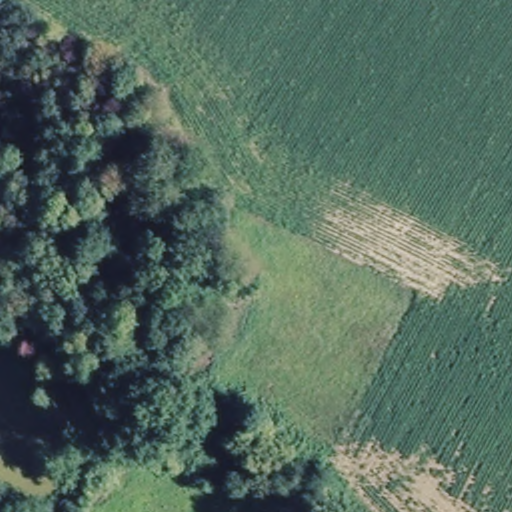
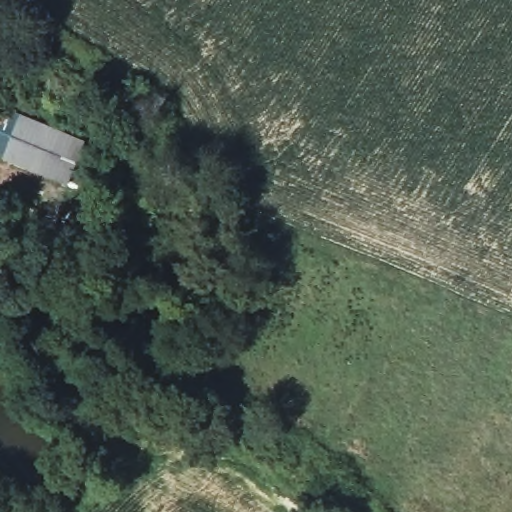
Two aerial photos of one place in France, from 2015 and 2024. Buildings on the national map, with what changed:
new [(19,119),(1,162),(0,161),(0,111),(19,119)]
new [(2,160),(19,119),(16,118),(19,114),(84,141),(66,186),(2,160)]

